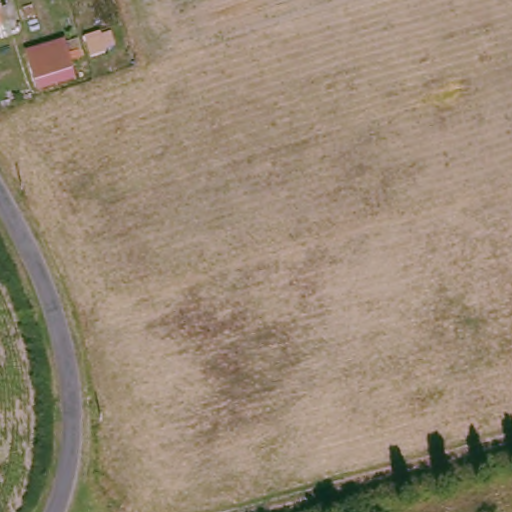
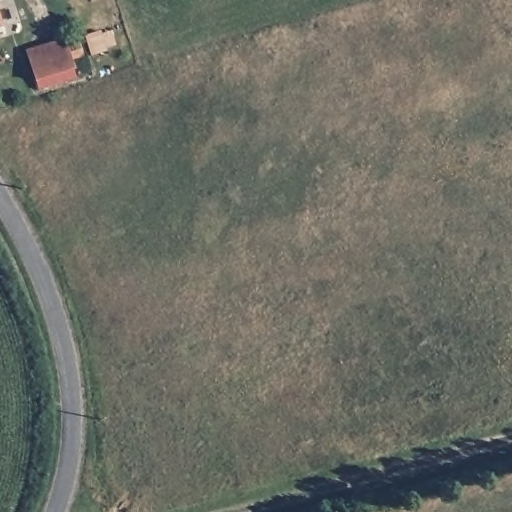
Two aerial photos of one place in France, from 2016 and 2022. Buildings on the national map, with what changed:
unchanged [(0,27),(0,23),(1,27),(0,27)]
unchanged [(65,45),(73,73),(35,84),(27,55),(65,45)]

